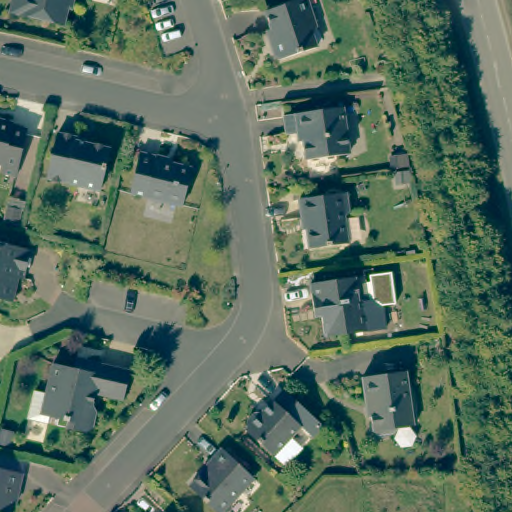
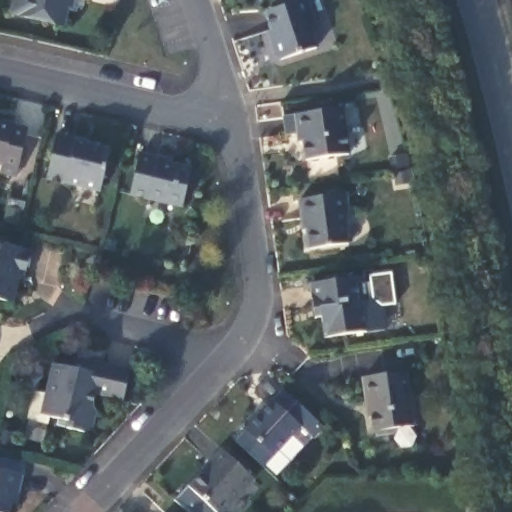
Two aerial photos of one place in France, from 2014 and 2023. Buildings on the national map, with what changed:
unchanged [(64,25),(13,13),(16,0),(71,0),(64,25)]
unchanged [(302,0),(307,0),(316,27),(311,28),(317,48),(281,59),(275,56),(271,43),(275,40),(266,11),(302,0)]
unchanged [(300,113),(348,108),(354,154),(311,159),(307,133),(303,134),(291,135),(288,115),(300,113)]
unchanged [(1,119),(18,122),(18,125),(33,129),(21,175),(5,171),(6,164),(0,163),(0,121),(1,121),(1,119)]
unchanged [(76,137),(76,141),(110,149),(100,190),(48,178),(58,133),(76,137)]
unchanged [(159,155),(157,161),(191,168),(183,205),(131,193),(140,151),(159,155)]
unchanged [(347,193),(350,214),(346,220),(349,244),(310,247),(306,219),(301,219),(299,200),(347,193)]
unchanged [(0,301),(0,245),(33,253),(25,281),(21,280),(18,292),(15,304),(8,302),(0,301)]
unchanged [(314,309),(310,283),(365,277),(368,301),(362,302),(366,331),(327,337),(322,317),(315,317),(314,309)]
unchanged [(135,372),(129,400),(116,397),(100,393),(97,405),(101,410),(97,429),(88,432),(71,428),(72,420),(55,416),(53,423),(33,419),(39,391),(51,393),(57,364),(79,369),(81,360),(91,362),(123,369),(135,372)]
unchanged [(409,374),(416,427),(396,429),(393,433),(378,435),(373,430),(367,402),(365,402),(361,378),(409,374)]
unchanged [(281,460),(251,434),(253,431),(252,425),(261,416),(266,417),(278,404),(279,405),(289,395),(314,418),(326,428),(315,440),(306,431),(281,460)]
unchanged [(212,462),(224,450),(255,480),(224,512),(217,512),(193,488),(215,465),(212,462)]
unchanged [(9,512),(0,512),(0,470),(23,475),(20,492),(17,504),(11,502),(9,512)]

